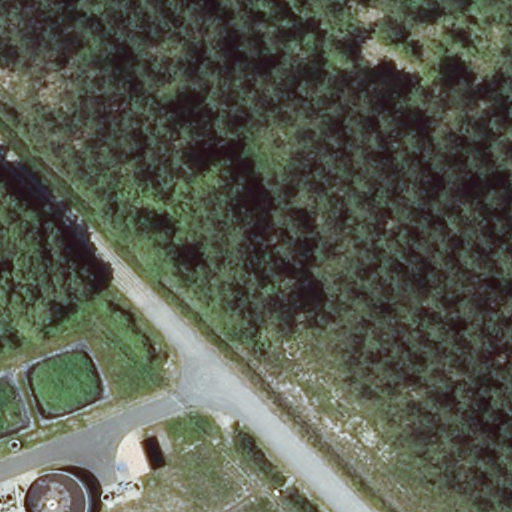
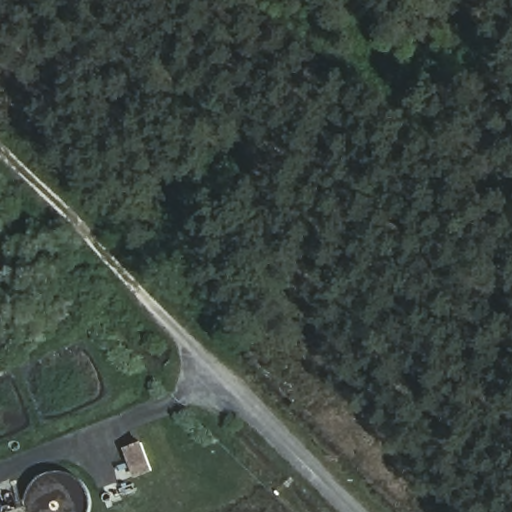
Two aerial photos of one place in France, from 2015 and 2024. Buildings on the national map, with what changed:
unchanged [(135,478),(124,447),(142,440),(155,471),(135,478)]

